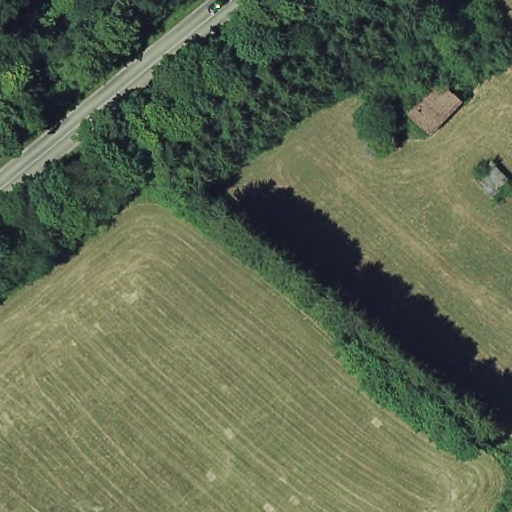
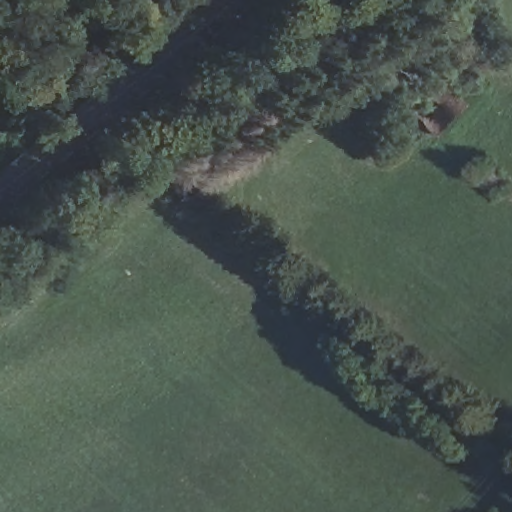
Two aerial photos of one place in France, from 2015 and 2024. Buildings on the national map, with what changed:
unchanged [(458,113),(426,141),(402,112),(435,82),(458,113)]
unchanged [(495,166),(512,183),(512,185),(494,202),(477,183),(495,166)]

